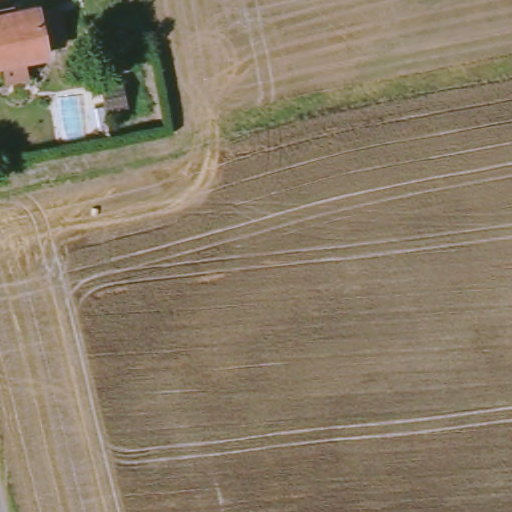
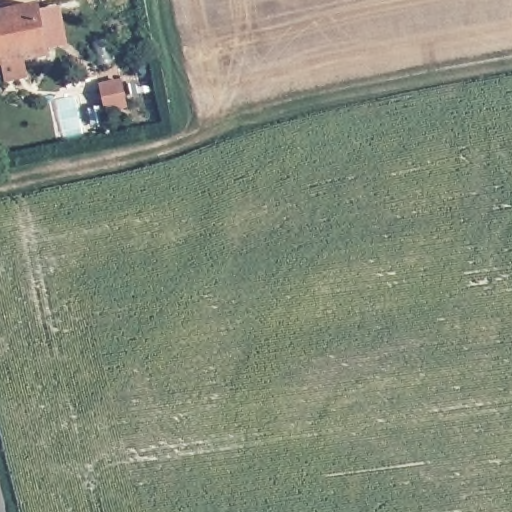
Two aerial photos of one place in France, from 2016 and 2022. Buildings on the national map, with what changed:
unchanged [(47,54),(0,61),(0,10),(38,4),(47,54)]

